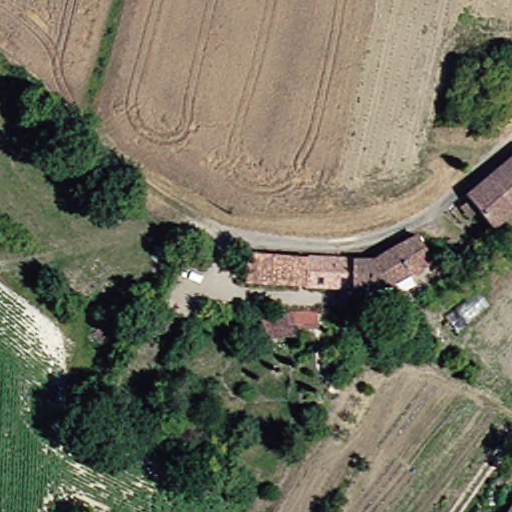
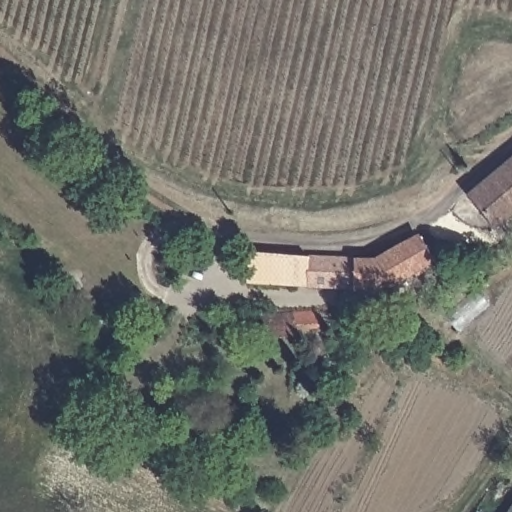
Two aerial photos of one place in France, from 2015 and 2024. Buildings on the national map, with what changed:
unchanged [(497,224),(470,196),(512,160),(512,210),(497,224)]
unchanged [(391,260),(390,250),(421,230),(436,263),(387,286),(389,282),(391,260)]
unchanged [(389,282),(347,290),(239,280),(242,250),(277,254),(391,260),(389,282)]

